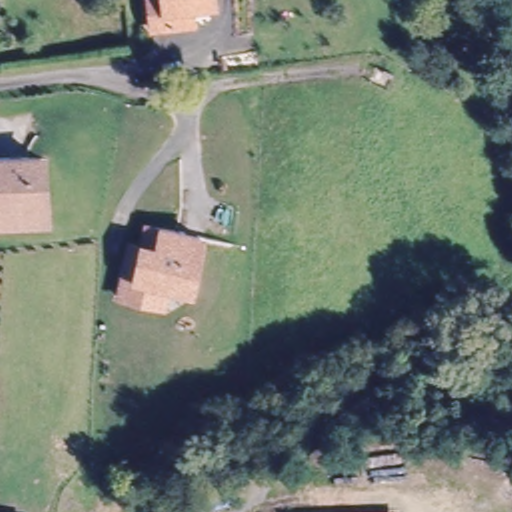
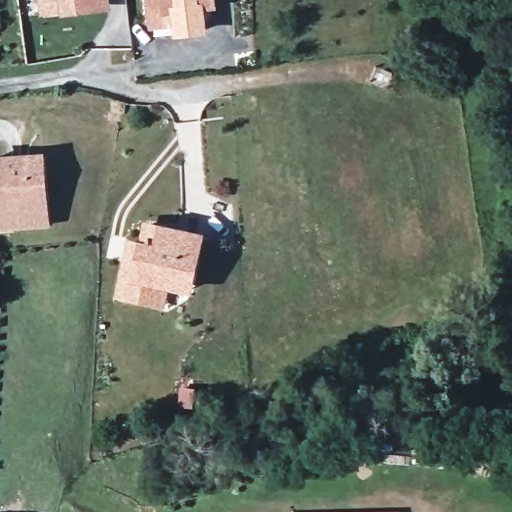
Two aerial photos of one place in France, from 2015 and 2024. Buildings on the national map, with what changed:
new [(61,17),(59,12),(40,15),(38,0),(110,0),(111,9),(61,17)]
unchanged [(154,25),(151,0),(204,0),(204,2),(190,3),(192,21),(170,23),(154,25)]
unchanged [(11,214),(12,227),(0,228),(0,161),(46,157),(47,176),(48,192),(50,211),(11,214)]
unchanged [(124,296),(130,265),(135,243),(147,246),(151,226),(205,237),(196,280),(194,290),(177,287),(172,285),(168,305),(152,301),(124,296)]
unchanged [(378,508),(399,508),(399,512),(288,512),(288,510),(378,508)]

